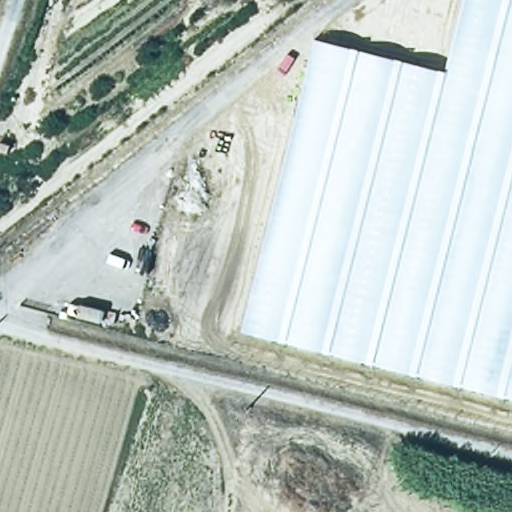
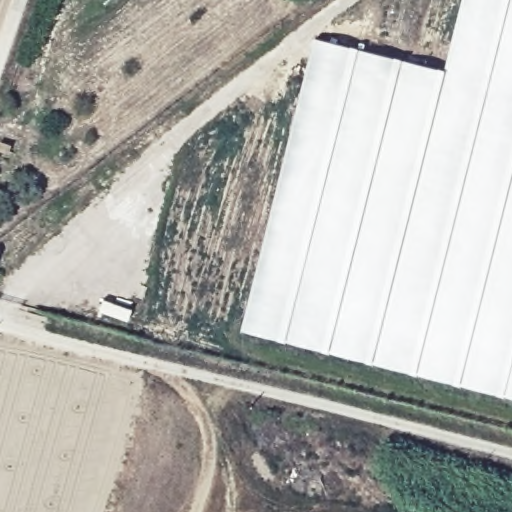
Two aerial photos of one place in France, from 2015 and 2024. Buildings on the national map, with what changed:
unchanged [(239,331),(314,40),(444,69),(462,0),(512,0),(512,398),(239,331)]

